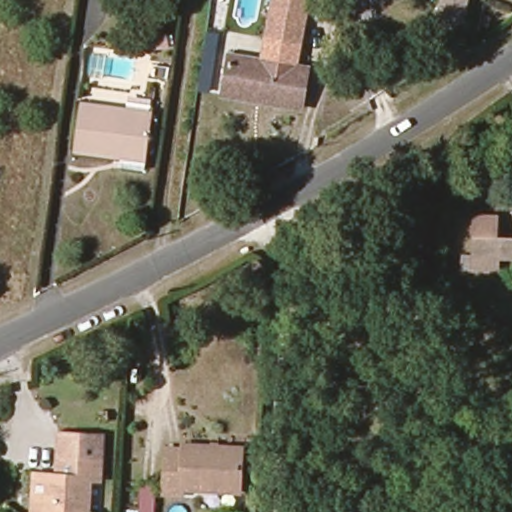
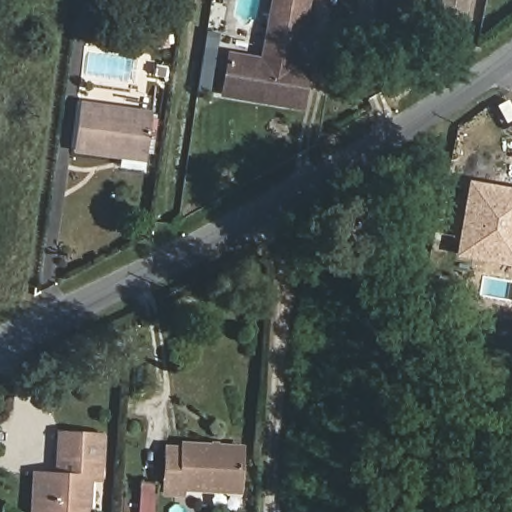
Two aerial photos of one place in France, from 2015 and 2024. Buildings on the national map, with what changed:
unchanged [(273,0),(306,0),(300,42),(267,37),(273,0)]
unchanged [(437,0),(462,0),(459,20),(435,16),(437,0)]
new [(203,33),(215,35),(207,92),(194,90),(203,33)]
unchanged [(306,68),(298,107),(219,94),(227,55),(306,68)]
unchanged [(150,116),(144,165),(79,155),(86,109),(150,116)]
new [(455,257),(470,180),(512,188),(512,266),(455,257)]
demolished [(500,219),(499,236),(512,238),(512,258),(499,258),(498,272),(475,271),(477,217),(500,219)]
unchanged [(35,476),(48,477),(59,478),(63,436),(105,440),(101,482),(90,481),(87,512),(32,512),(35,476)]
unchanged [(237,448),(235,491),(165,489),(165,446),(237,448)]

